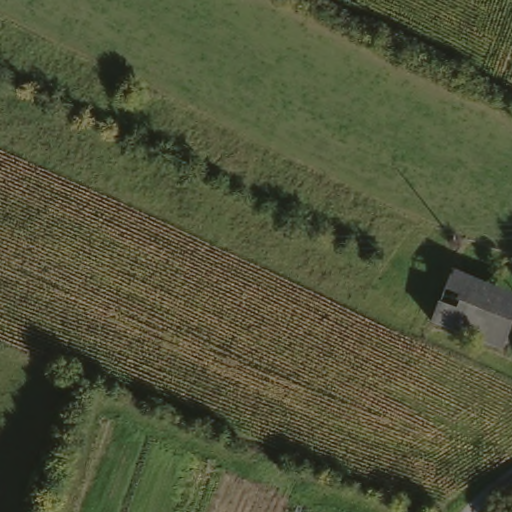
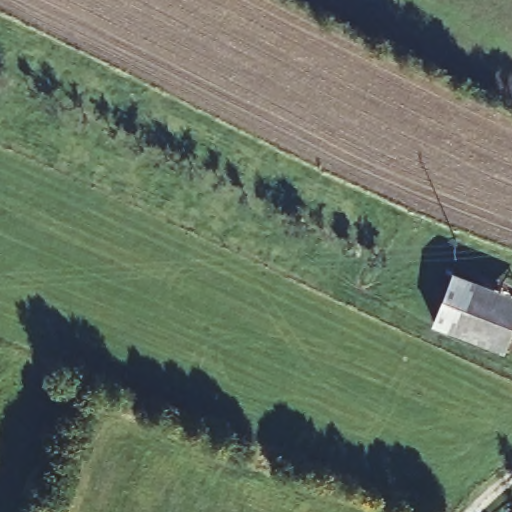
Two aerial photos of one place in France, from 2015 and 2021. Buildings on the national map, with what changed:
unchanged [(431,320),(450,269),(512,293),(512,314),(501,346),(431,320)]

